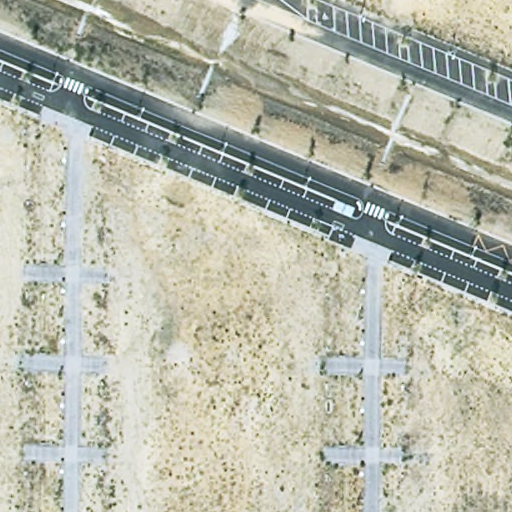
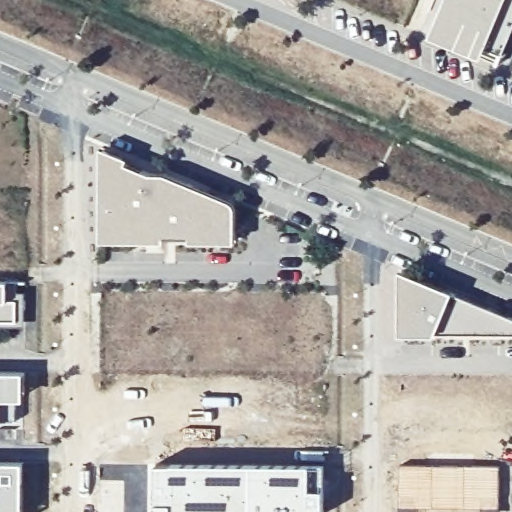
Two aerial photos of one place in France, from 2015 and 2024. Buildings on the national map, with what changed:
new [(512,0),(512,24),(498,57),(472,46),(474,39),(433,22),(443,0),(512,0)]
new [(98,242),(99,146),(128,158),(126,164),(148,173),(163,173),(231,202),(235,207),(233,242),(188,242),(188,237),(163,236),(163,242),(98,242)]
new [(397,335),(397,268),(452,292),(512,318),(512,335),(433,335),(397,335)]
new [(7,282),(16,283),(15,293),(23,294),(23,325),(0,325),(0,282),(7,282)]
new [(25,371),(25,402),(4,402),(3,426),(0,426),(0,371),(25,371)]
new [(26,461),(25,512),(0,512),(0,461),(26,461)]
new [(180,461),(252,461),(251,512),(153,512),(152,463),(180,461)]
new [(252,461),(326,461),(325,512),(251,512),(252,461)]
new [(500,465),(500,508),(400,507),(399,465),(500,465)]

